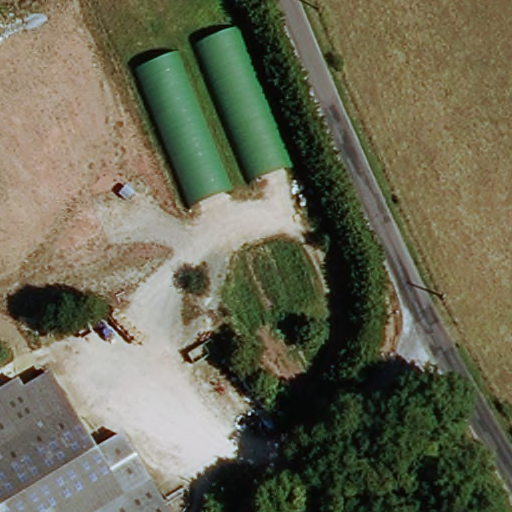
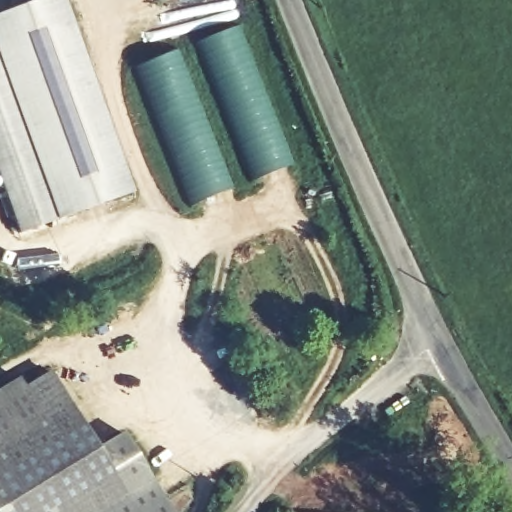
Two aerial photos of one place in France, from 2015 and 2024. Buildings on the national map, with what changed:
new [(131,189),(17,231),(0,185),(0,13),(35,0),(61,0),(131,189)]
unchanged [(239,30),(293,166),(193,207),(139,67),(239,30)]
unchanged [(29,395),(50,430),(0,461),(0,387),(18,376),(29,395)]
unchanged [(0,512),(0,461),(50,430),(29,395),(60,376),(108,457),(133,502),(116,512),(0,512)]
unchanged [(134,442),(159,486),(133,502),(108,457),(134,442)]
unchanged [(159,486),(176,512),(116,512),(133,502),(159,486)]

